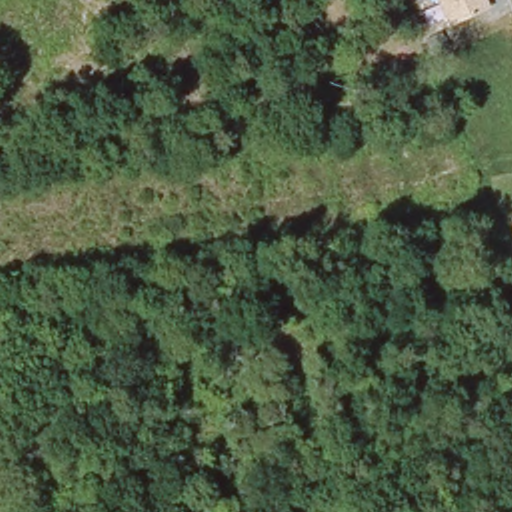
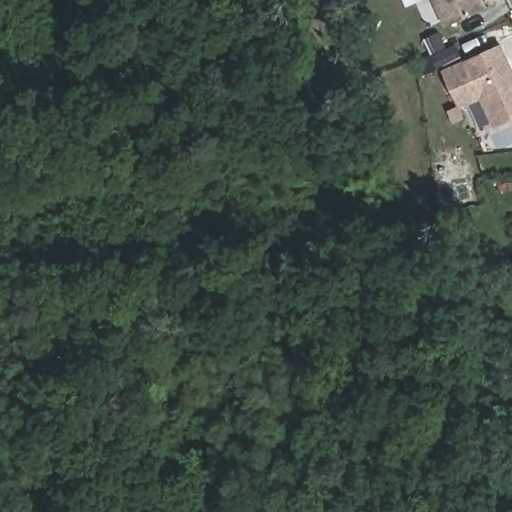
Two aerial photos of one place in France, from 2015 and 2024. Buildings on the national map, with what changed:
unchanged [(486,9),(449,27),(438,0),(483,0),(486,9)]
new [(486,94),(464,104),(449,69),(505,44),(512,59),(512,118),(499,124),(486,94)]

